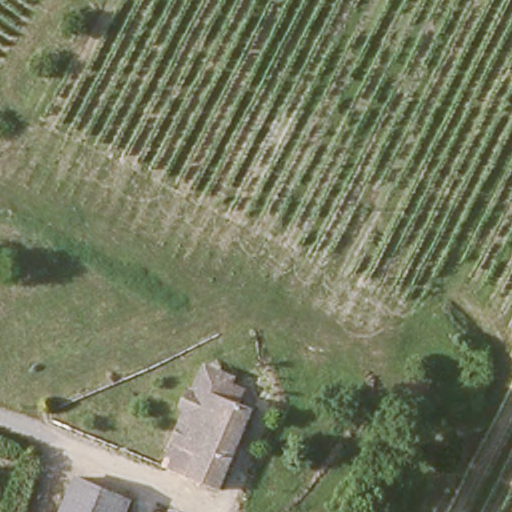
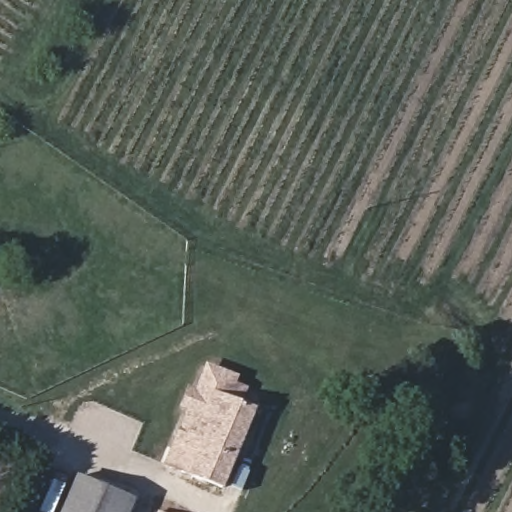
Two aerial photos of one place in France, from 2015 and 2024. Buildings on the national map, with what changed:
unchanged [(207,370),(234,379),(232,384),(245,388),(241,402),(261,408),(227,492),(197,480),(172,470),(180,447),(206,376),(207,370)]
unchanged [(132,497),(127,512),(64,512),(77,476),(132,497)]
unchanged [(166,512),(158,512),(159,510),(166,512)]

